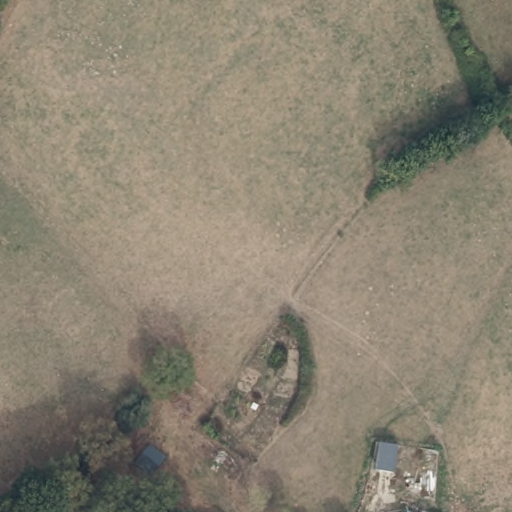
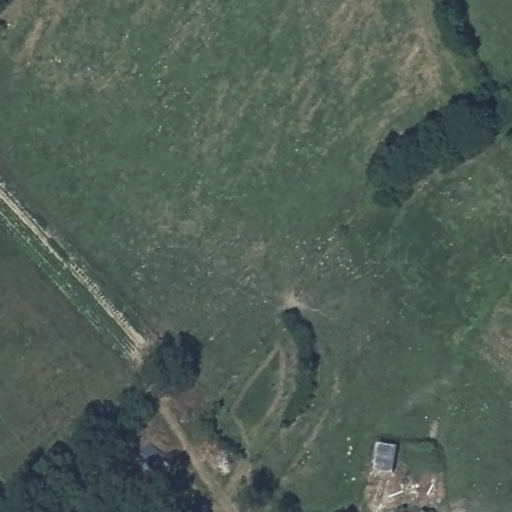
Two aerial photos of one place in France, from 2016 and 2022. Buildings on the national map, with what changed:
unchanged [(375,472),(378,446),(394,448),(390,473),(375,472)]

